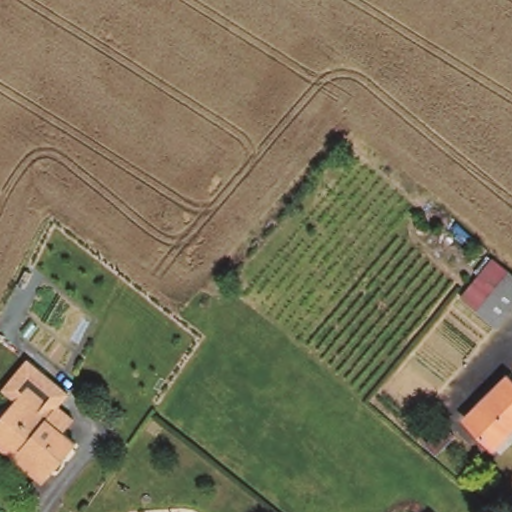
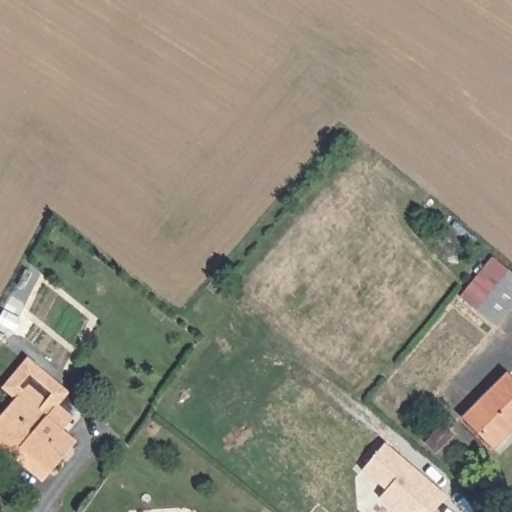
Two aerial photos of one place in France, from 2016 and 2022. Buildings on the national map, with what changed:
unchanged [(495,324),(461,295),(492,259),(497,263),(512,276),(512,306),(495,324)]
unchanged [(512,380),(512,425),(493,444),(465,416),(506,374),(512,380)]
unchanged [(0,449),(0,417),(23,390),(26,386),(36,394),(38,396),(44,401),(55,410),(70,423),(60,433),(74,446),(49,475),(42,484),(12,459),(0,449)]
unchanged [(457,433),(440,453),(429,443),(446,424),(457,433)]
new [(434,512),(395,512),(379,497),(385,490),(363,469),(385,442),(448,496),(434,512)]

